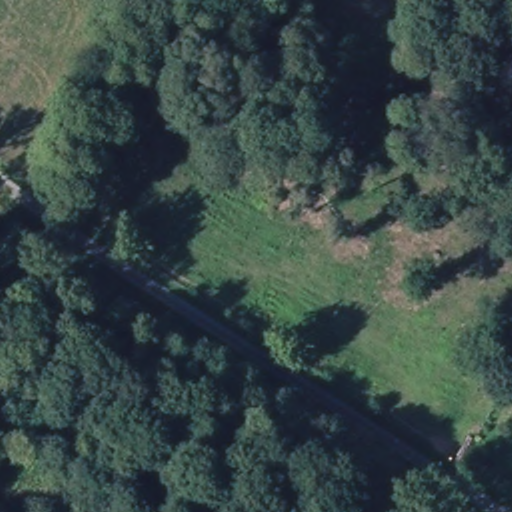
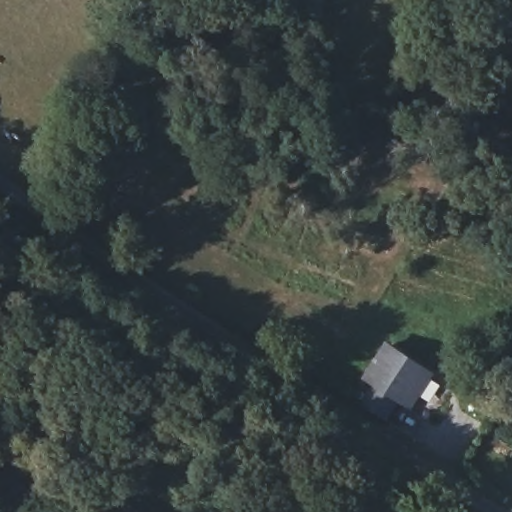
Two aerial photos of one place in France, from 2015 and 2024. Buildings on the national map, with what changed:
new [(386,341),(435,373),(432,379),(441,385),(430,403),(420,397),(410,413),(404,409),(399,417),(394,413),(388,422),(351,396),(360,382),(386,341)]

